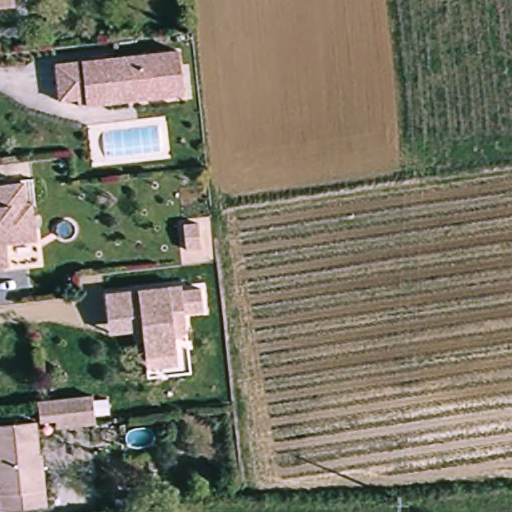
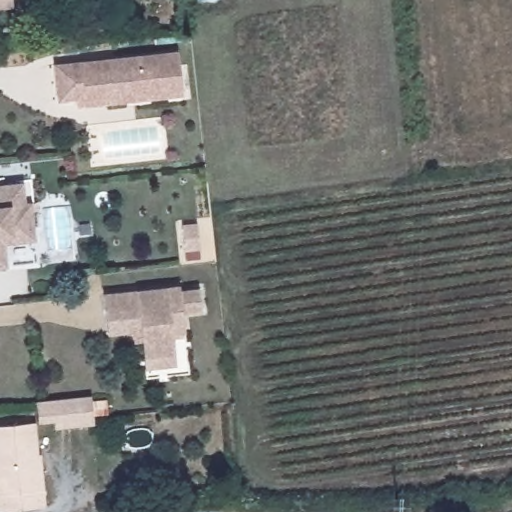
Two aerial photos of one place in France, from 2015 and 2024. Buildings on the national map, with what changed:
unchanged [(13,6),(0,8),(0,0),(12,0),(13,6)]
unchanged [(76,107),(75,100),(57,103),(53,66),(178,50),(183,94),(144,99),(105,104),(76,107)]
unchanged [(10,273),(0,275),(0,191),(25,188),(28,208),(34,208),(38,239),(38,246),(7,250),(10,273)]
unchanged [(194,221),(197,246),(181,248),(178,223),(194,221)]
unchanged [(132,334),(107,337),(105,315),(103,297),(180,289),(181,294),(200,292),(201,314),(183,316),(185,335),(173,337),(175,356),(143,360),(141,343),(133,344),(132,334)]
unchanged [(100,423),(58,428),(57,419),(41,420),(40,401),(97,396),(100,417),(100,423)]
unchanged [(0,510),(0,426),(38,421),(40,451),(44,487),(46,506),(0,510)]

